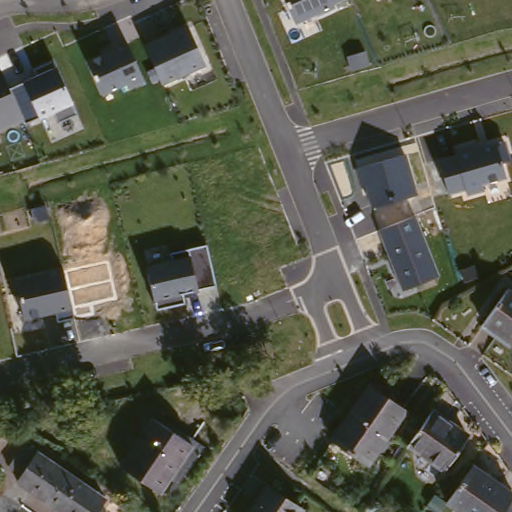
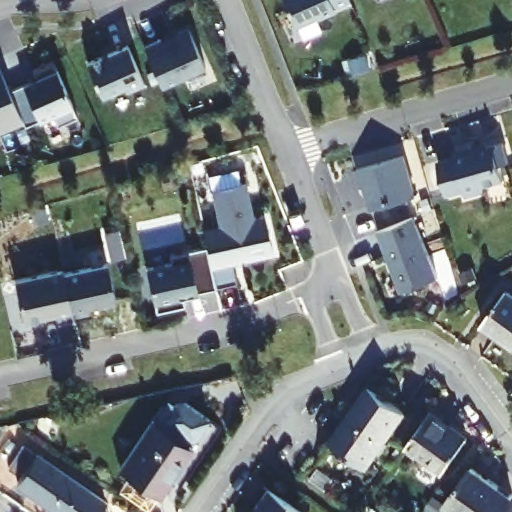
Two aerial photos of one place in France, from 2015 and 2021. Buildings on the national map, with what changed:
unchanged [(283,0),(344,0),(332,5),(333,8),(316,16),(315,13),(295,24),(283,0)]
unchanged [(158,78),(151,82),(147,72),(154,68),(145,46),(187,26),(206,66),(162,85),(158,78)]
unchanged [(88,62),(126,44),(145,82),(130,90),(127,84),(102,96),(88,62)]
unchanged [(22,83),(36,75),(34,69),(53,61),(56,68),(72,105),(75,114),(57,123),(53,113),(39,120),(37,117),(25,123),(24,119),(0,131),(0,71),(9,90),(22,83)]
unchanged [(466,196),(465,189),(447,194),(438,159),(505,140),(510,161),(500,163),(505,179),(496,182),(496,180),(481,184),(483,191),(466,196)]
unchanged [(365,185),(362,186),(358,169),(405,155),(416,195),(372,207),(365,185)]
new [(205,246),(201,227),(216,224),(210,189),(246,181),(254,215),(264,213),(272,254),(231,263),(235,281),(214,286),(205,246)]
unchanged [(380,232),(415,216),(438,276),(403,290),(380,232)]
unchanged [(155,300),(146,265),(171,260),(169,253),(205,246),(214,286),(197,289),(198,291),(182,295),(184,303),(156,310),(155,300)]
unchanged [(62,268),(109,261),(117,300),(93,304),(95,315),(72,318),(62,268)]
unchanged [(71,309),(72,318),(56,321),(55,313),(25,320),(17,278),(62,268),(71,309)]
unchanged [(512,297),(512,342),(486,324),(507,293),(512,297)]
unchanged [(400,414),(364,467),(331,443),(348,419),(366,392),(400,414)]
unchanged [(465,435),(442,468),(403,441),(426,407),(465,435)]
unchanged [(178,444),(181,438),(192,446),(167,485),(159,478),(149,492),(116,469),(147,422),(178,444)]
unchanged [(0,436),(0,426),(7,424),(0,436)]
unchanged [(30,476),(16,466),(31,446),(111,502),(105,512),(65,512),(24,484),(30,476)]
unchanged [(498,512),(460,512),(445,501),(470,464),(510,493),(498,512)]
unchanged [(248,512),(264,489),(297,512),(248,512)]

